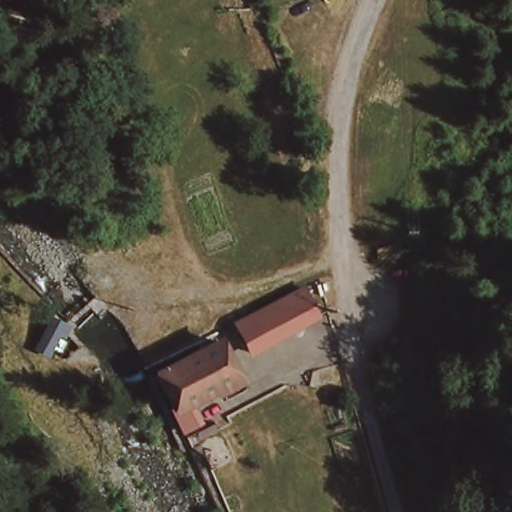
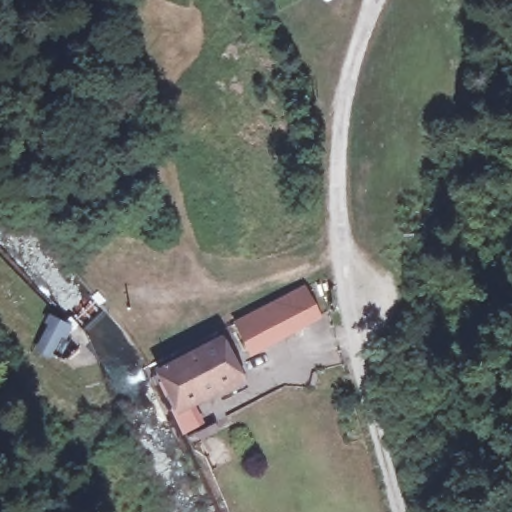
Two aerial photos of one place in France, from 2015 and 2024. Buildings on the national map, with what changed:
unchanged [(233,323),(304,286),(321,318),(249,357),(233,323)]
unchanged [(69,325),(53,360),(35,354),(49,318),(69,325)]
unchanged [(183,435),(155,372),(224,337),(248,387),(221,400),(218,396),(194,406),(203,424),(183,435)]

